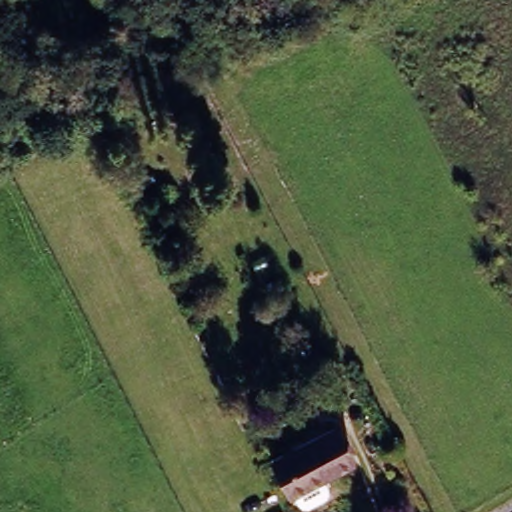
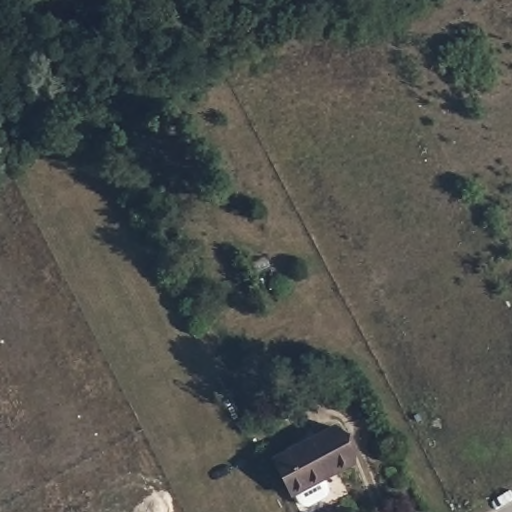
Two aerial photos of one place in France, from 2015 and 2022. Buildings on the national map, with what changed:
unchanged [(322,497),(305,506),(300,503),(294,492),(290,494),(271,457),(333,427),(352,464),(319,480),(325,491),(322,497)]

